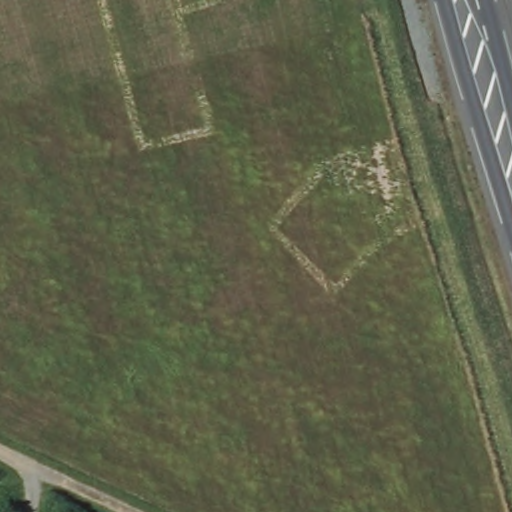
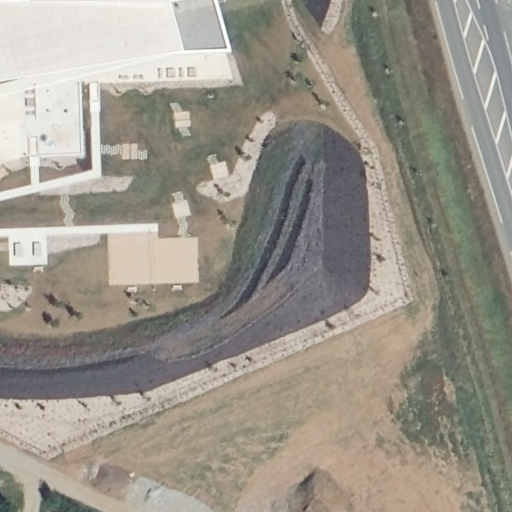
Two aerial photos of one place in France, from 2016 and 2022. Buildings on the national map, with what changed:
new [(187,54),(0,97),(0,0),(212,0),(227,51),(187,54)]

